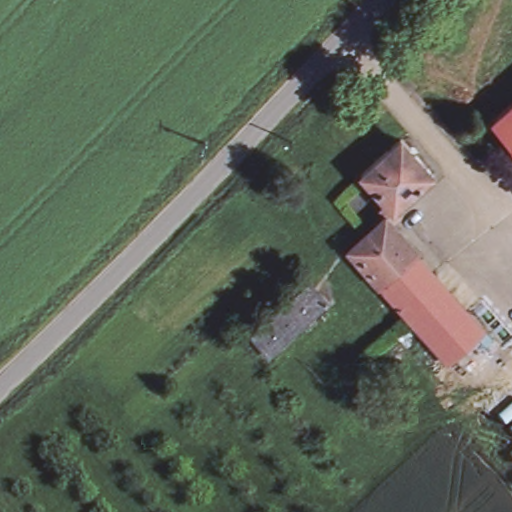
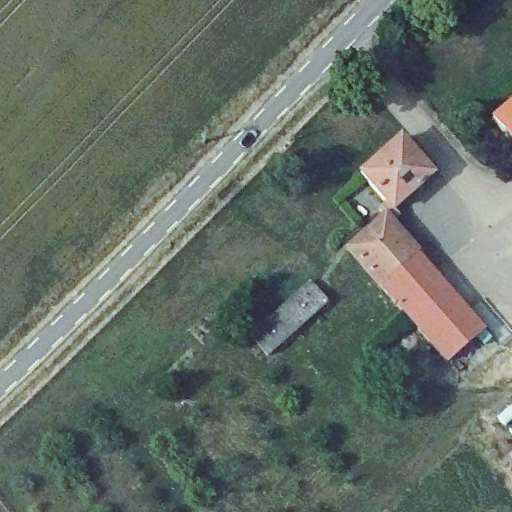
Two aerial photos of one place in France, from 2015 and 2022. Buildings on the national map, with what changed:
unchanged [(512,139),(490,115),(512,95),(512,139)]
unchanged [(384,212),(379,206),(387,200),(361,171),(403,135),(431,170),(391,205),(396,211),(388,217),(415,248),(376,283),(344,246),(384,212)]
unchanged [(415,248),(483,326),(446,358),(444,359),(376,283),(415,248)]
unchanged [(313,279),(329,300),(272,352),(253,330),(313,279)]

